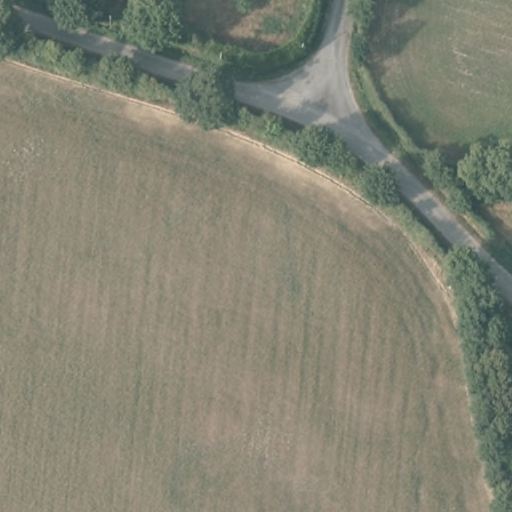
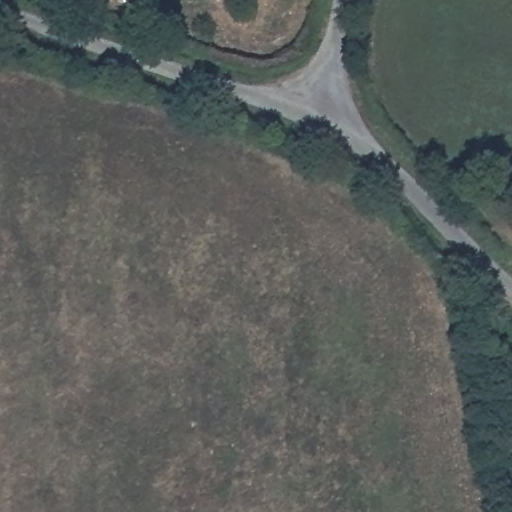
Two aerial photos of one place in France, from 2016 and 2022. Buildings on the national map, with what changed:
unchanged [(124,0),(154,0),(150,10),(124,0)]

